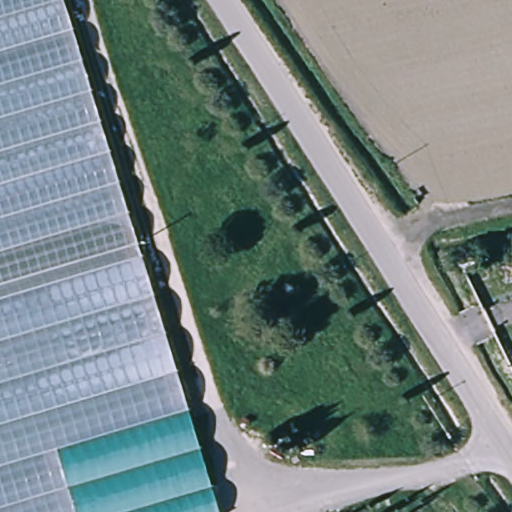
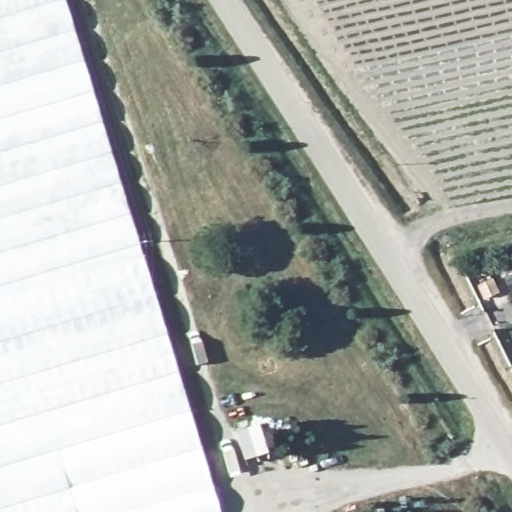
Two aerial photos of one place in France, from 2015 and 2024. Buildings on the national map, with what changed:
unchanged [(215,490),(141,512),(0,512),(0,0),(69,0),(215,490)]

